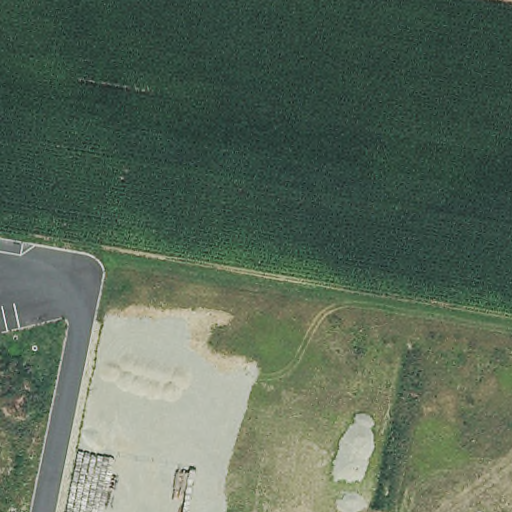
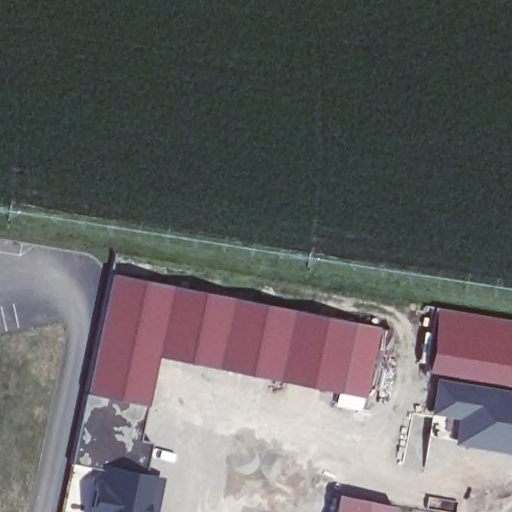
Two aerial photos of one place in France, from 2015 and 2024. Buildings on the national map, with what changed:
new [(108,272),(291,309),(276,380),(155,356),(145,405),(83,392),(108,272)]
new [(512,386),(423,370),(432,306),(512,321),(512,386)]
new [(291,309),(351,321),(337,392),(276,380),(291,309)]
new [(138,441),(152,442),(146,477),(165,478),(157,512),(91,512),(97,469),(72,463),(83,392),(145,405),(138,441)]
new [(398,512),(335,512),(340,491),(398,507),(398,512)]

